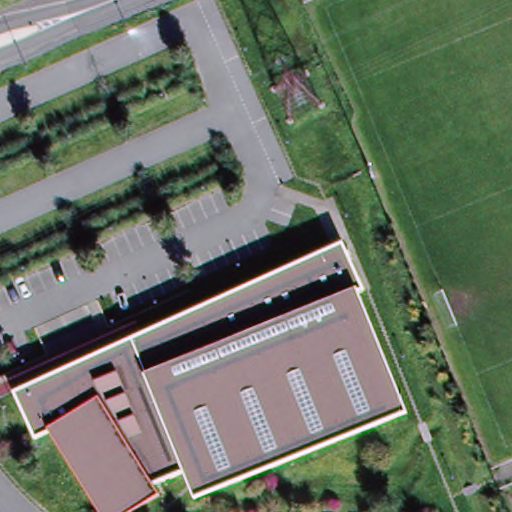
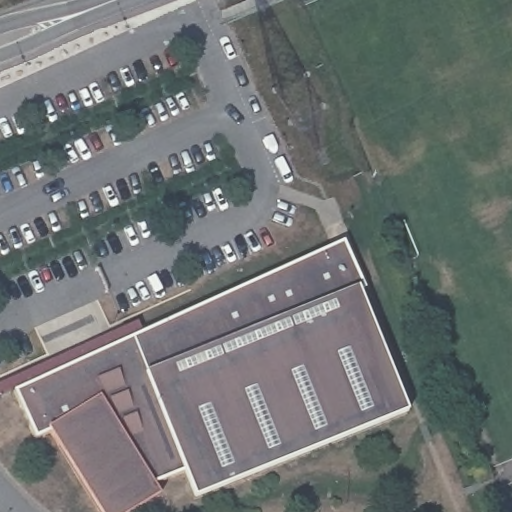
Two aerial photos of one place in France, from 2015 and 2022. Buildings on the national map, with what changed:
unchanged [(411,419),(197,502),(187,477),(156,489),(159,498),(135,512),(100,512),(48,433),(34,437),(10,380),(141,328),(345,249),(411,419)]
unchanged [(10,380),(0,384),(0,370),(136,316),(141,328),(10,380)]

